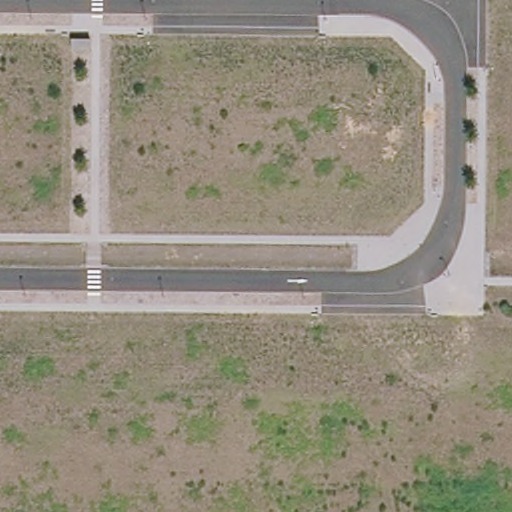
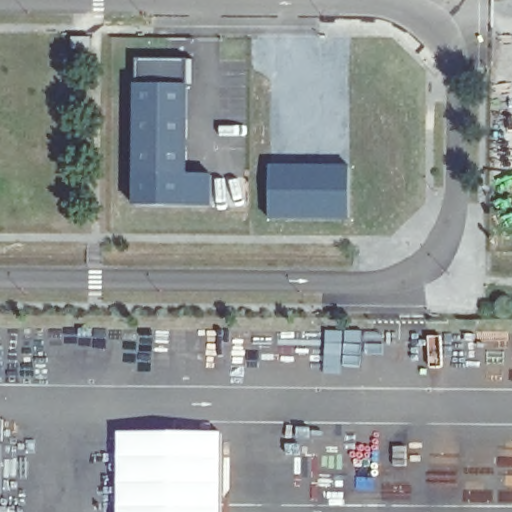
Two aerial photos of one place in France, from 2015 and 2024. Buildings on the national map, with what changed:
new [(135,174),(137,82),(137,60),(186,59),(186,85),(186,176),(135,174)]
new [(269,164),(349,166),(348,221),(265,220),(269,164)]
new [(215,176),(215,208),(134,207),(135,174),(186,176),(215,176)]
new [(222,431),(222,512),(116,512),(115,485),(117,430),(222,431)]

